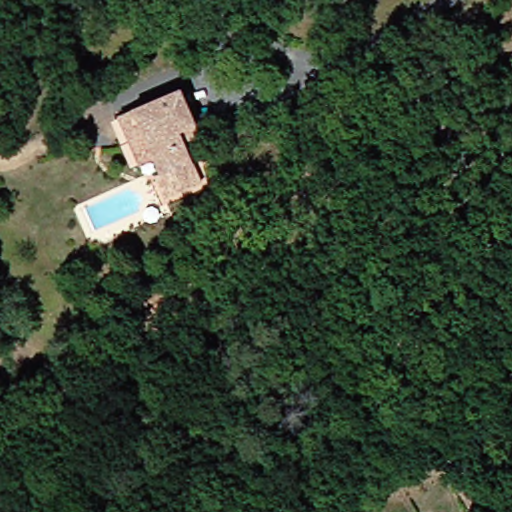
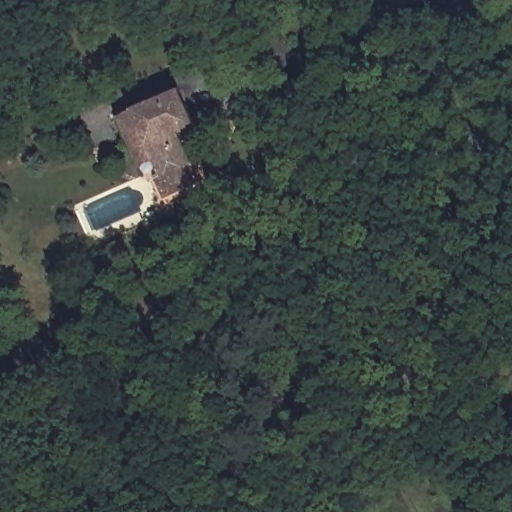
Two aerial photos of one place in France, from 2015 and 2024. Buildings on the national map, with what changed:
unchanged [(202,124),(185,130),(206,183),(163,200),(157,185),(165,182),(157,164),(147,170),(125,117),(135,113),(190,91),(202,124)]

